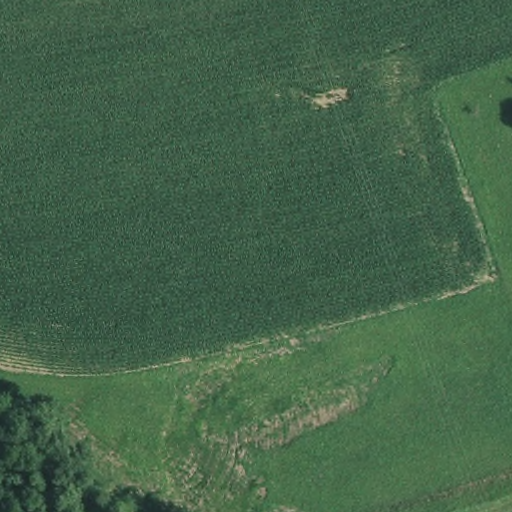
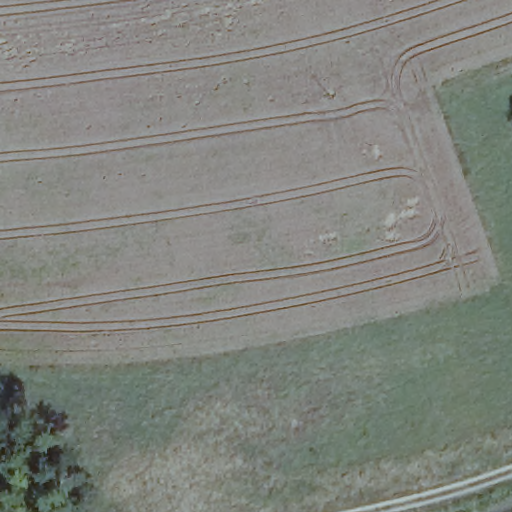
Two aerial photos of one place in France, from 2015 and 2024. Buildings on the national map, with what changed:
[]

